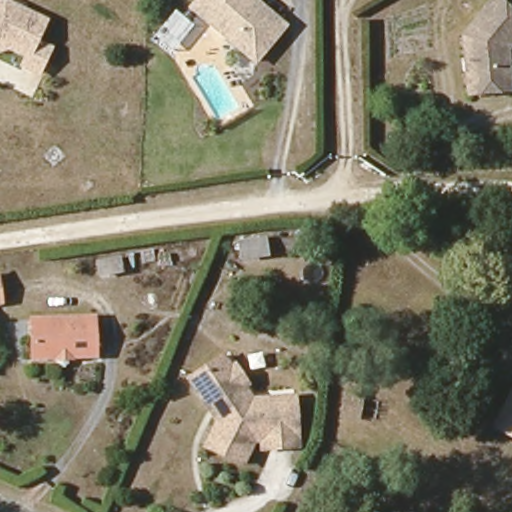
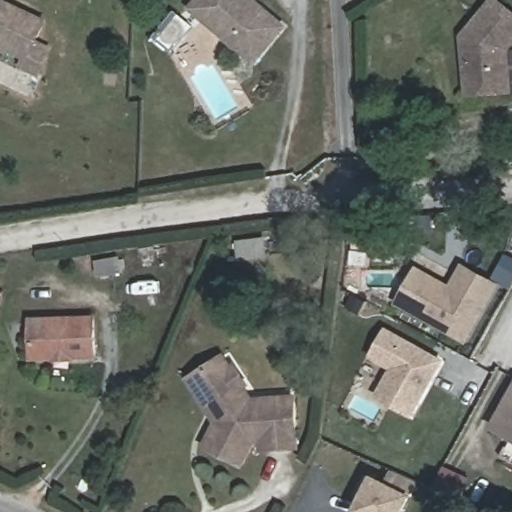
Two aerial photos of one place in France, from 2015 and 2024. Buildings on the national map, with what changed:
unchanged [(46,19),(36,40),(50,47),(38,71),(23,64),(27,55),(8,46),(0,49),(0,1),(6,0),(46,19)]
unchanged [(232,43),(199,15),(187,5),(191,0),(252,0),(263,10),(280,24),(250,59),(232,43)]
unchanged [(467,39),(498,0),(512,12),(512,51),(510,52),(512,70),(512,94),(472,97),(469,64),(468,47),(467,39)]
new [(469,339),(402,301),(419,270),(453,288),(465,266),(498,285),(469,339)]
unchanged [(0,301),(0,274),(3,274),(6,300),(0,301)]
unchanged [(53,364),(53,360),(33,360),(32,323),(94,320),(95,358),(74,359),(74,363),(53,364)]
new [(387,330),(441,360),(412,414),(379,395),(394,368),(372,356),(387,330)]
unchanged [(193,381),(204,374),(209,375),(210,370),(215,371),(216,366),(227,359),(236,372),(239,370),(250,385),(246,388),(256,403),(298,400),(302,450),(267,452),(266,443),(258,443),(246,467),(210,449),(222,425),(212,410),(193,381)]
unchanged [(498,423),(503,415),(512,399),(512,431),(498,423)]
new [(396,470),(417,479),(400,512),(363,512),(358,509),(374,478),(390,485),(396,470)]

